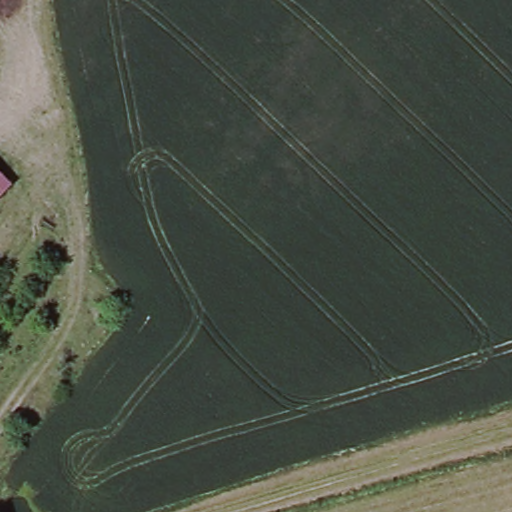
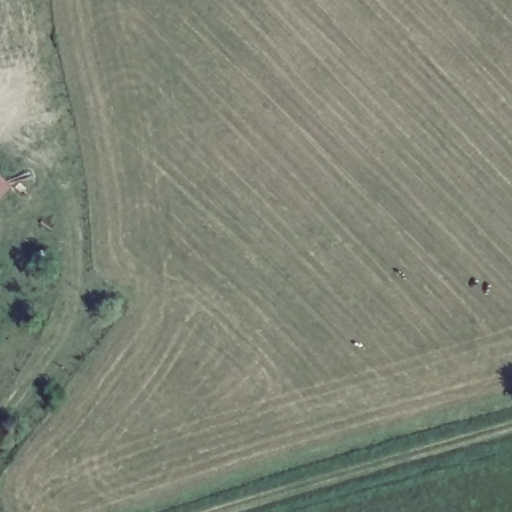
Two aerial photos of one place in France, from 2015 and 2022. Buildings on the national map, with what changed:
unchanged [(0,205),(0,172),(17,188),(0,205)]

